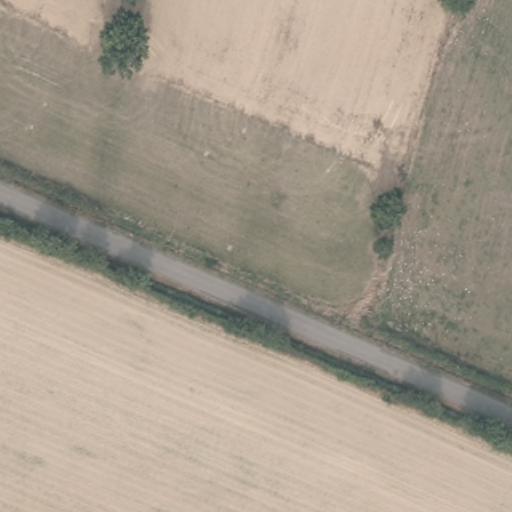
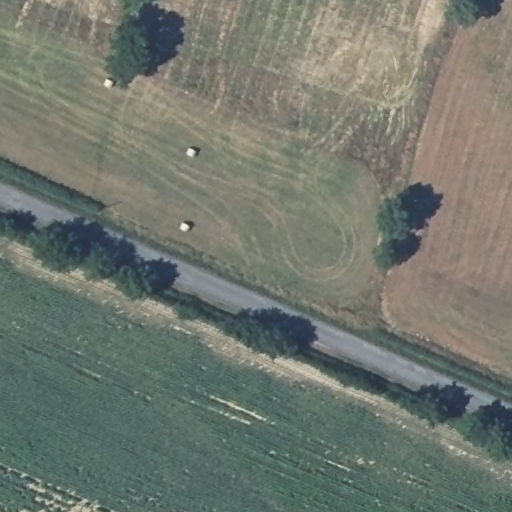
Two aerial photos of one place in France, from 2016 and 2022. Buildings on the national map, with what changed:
[]

